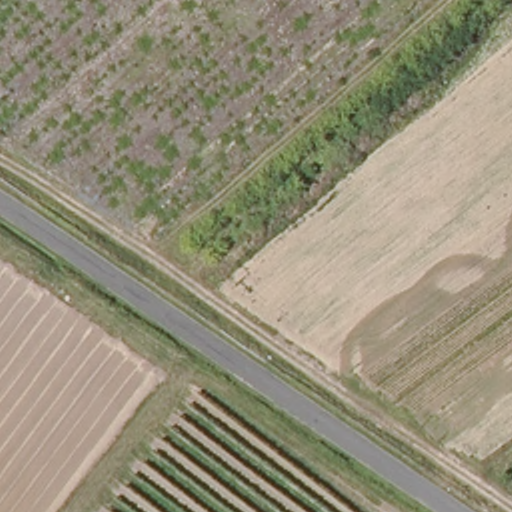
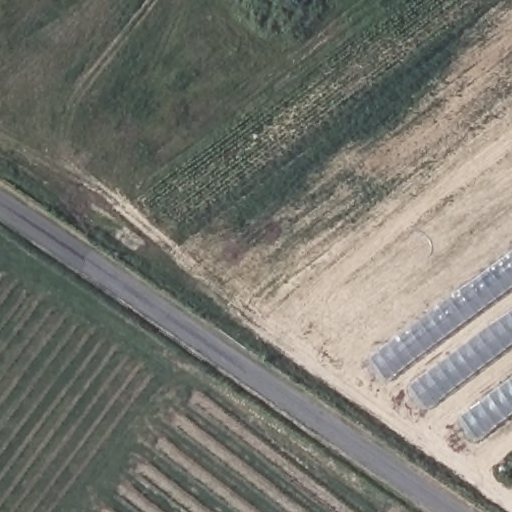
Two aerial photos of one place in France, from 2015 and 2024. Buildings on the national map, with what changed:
new [(512,253),(512,291),(391,382),(372,356),(512,253)]
new [(412,385),(512,310),(512,348),(430,410),(412,385)]
new [(512,416),(480,439),(462,415),(512,378),(512,416)]

